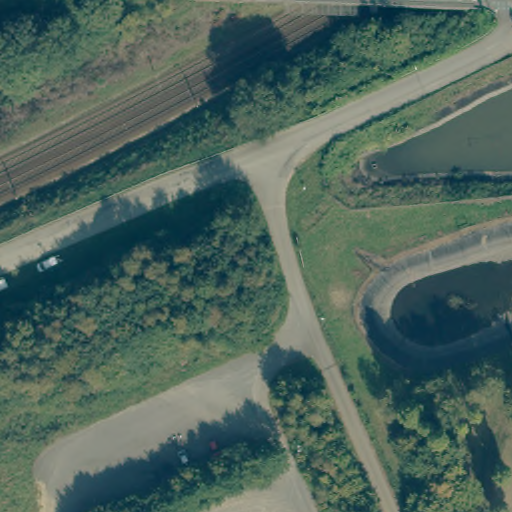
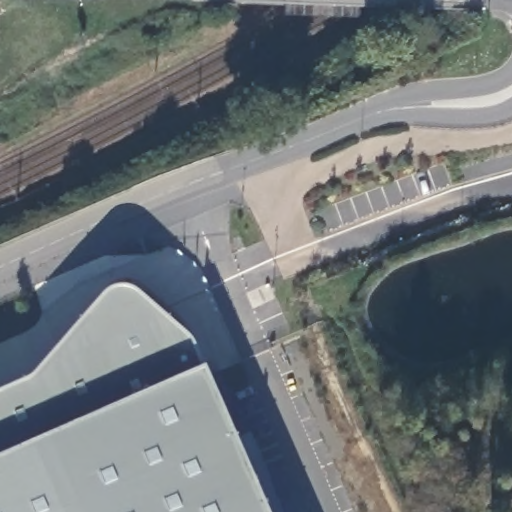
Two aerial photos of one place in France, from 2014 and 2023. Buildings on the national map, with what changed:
new [(31,382),(110,295),(123,290),(133,293),(189,341),(205,373),(266,512),(0,512),(0,396),(31,382)]

